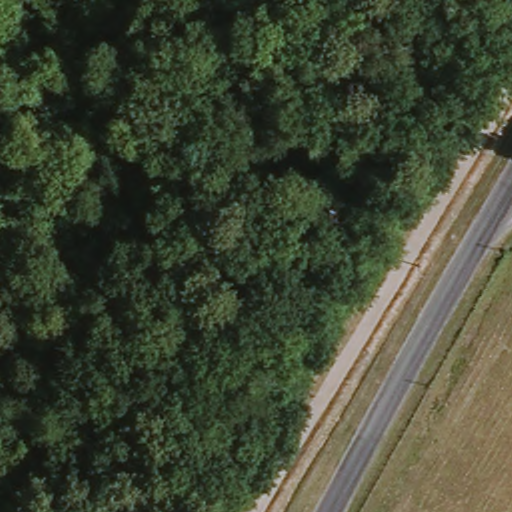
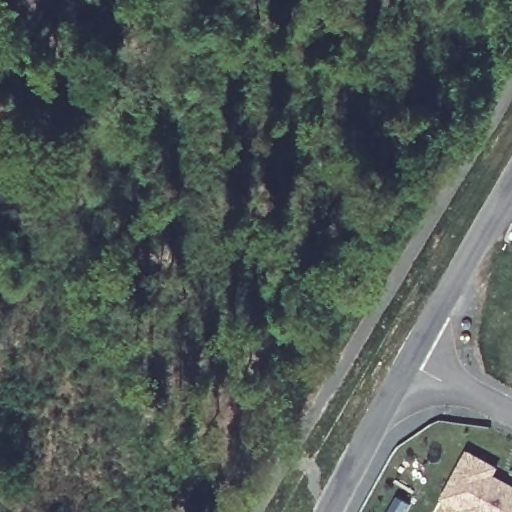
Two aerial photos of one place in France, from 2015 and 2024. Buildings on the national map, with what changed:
new [(467,510),(445,498),(470,452),(498,468),(494,476),(504,481),(512,485),(512,512),(465,512),(467,510)]

